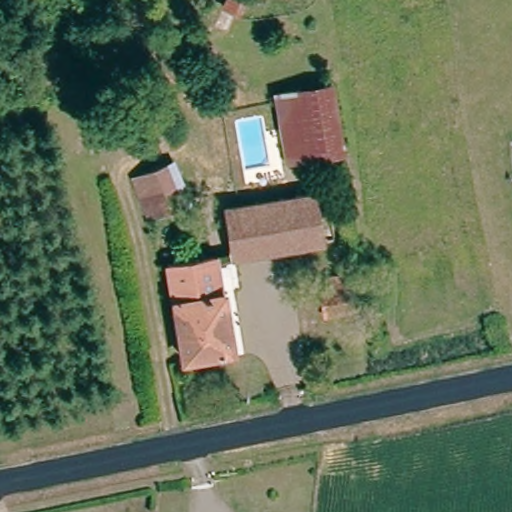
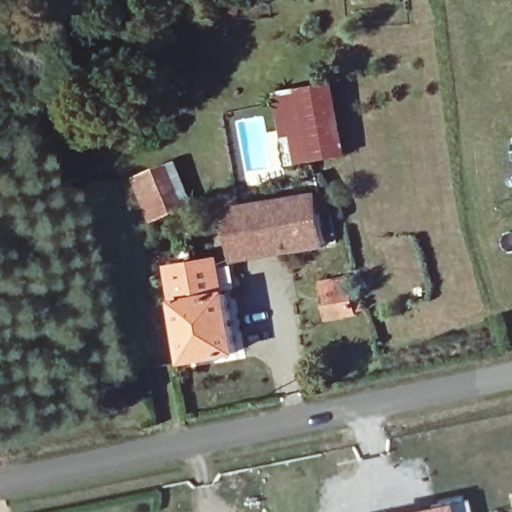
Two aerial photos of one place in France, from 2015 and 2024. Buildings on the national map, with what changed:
unchanged [(295,159),(288,123),(283,95),(331,86),(335,109),(342,150),(322,154),(295,159)]
unchanged [(166,164),(183,205),(157,217),(139,174),(151,169),(166,164)]
unchanged [(320,248),(232,261),(225,210),(326,194),(332,216),(314,219),(320,248)]
unchanged [(214,256),(216,284),(225,282),(234,349),(182,357),(169,263),(214,256)]
unchanged [(357,313),(322,319),(315,284),(337,280),(343,300),(352,299),(357,313)]
new [(403,510),(441,503),(463,499),(466,512),(393,512),(403,510)]

